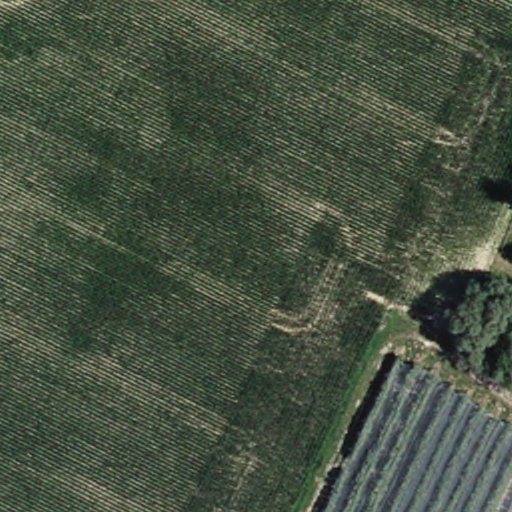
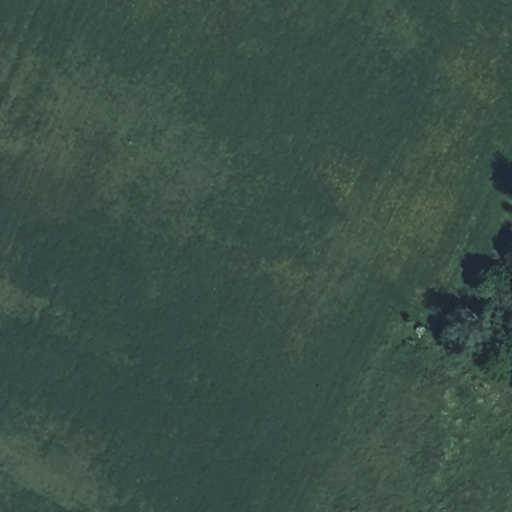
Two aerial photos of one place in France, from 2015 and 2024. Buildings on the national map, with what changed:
[]

